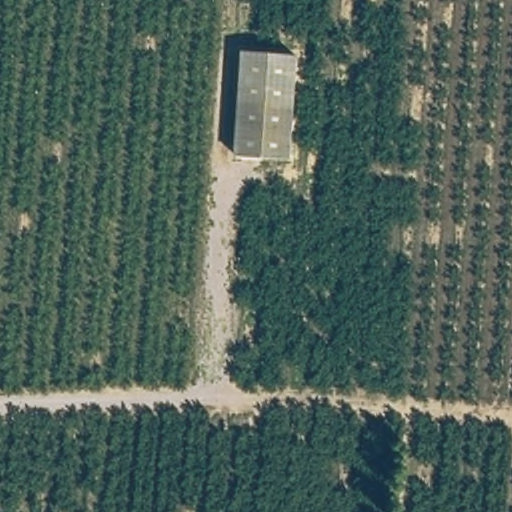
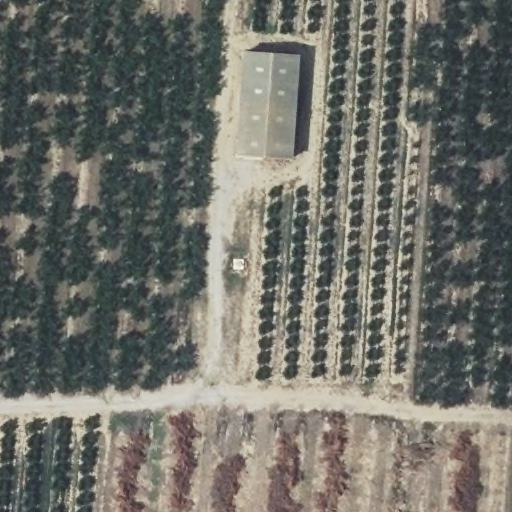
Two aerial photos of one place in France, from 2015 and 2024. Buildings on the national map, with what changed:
unchanged [(240,50),(300,53),(295,164),(240,160),(240,50)]

